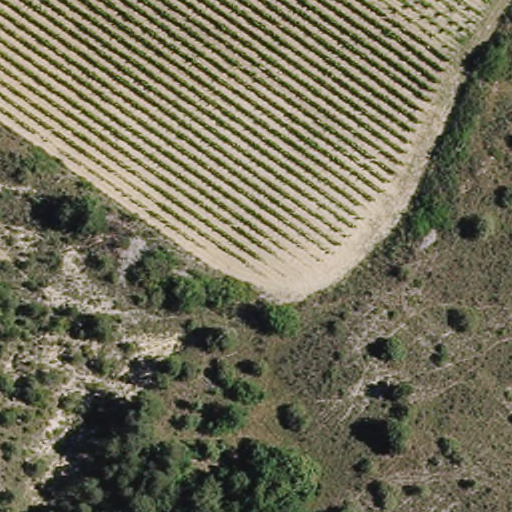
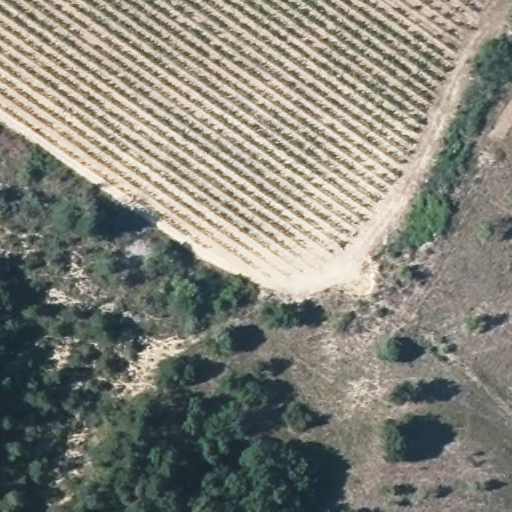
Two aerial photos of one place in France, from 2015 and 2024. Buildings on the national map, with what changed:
[]

